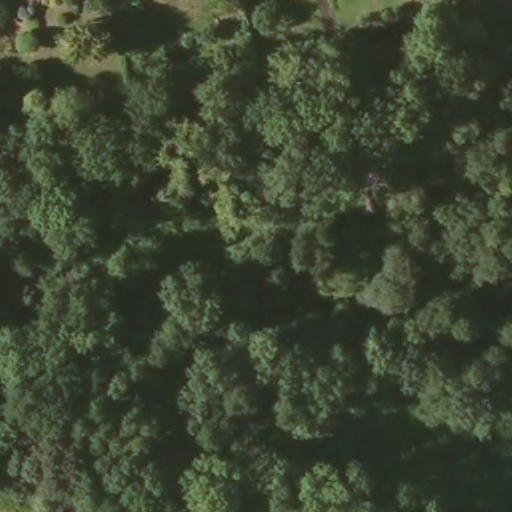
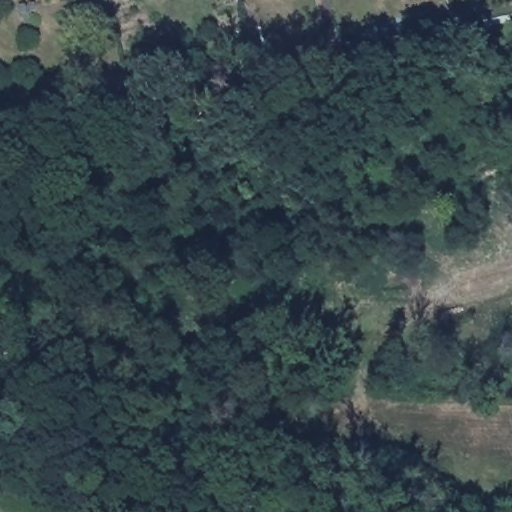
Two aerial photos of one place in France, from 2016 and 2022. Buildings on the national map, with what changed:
[]

